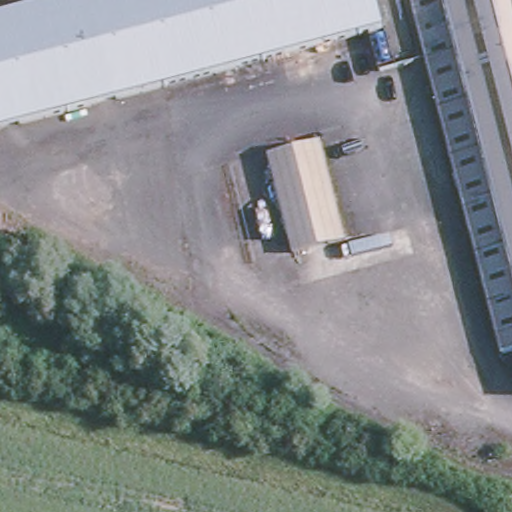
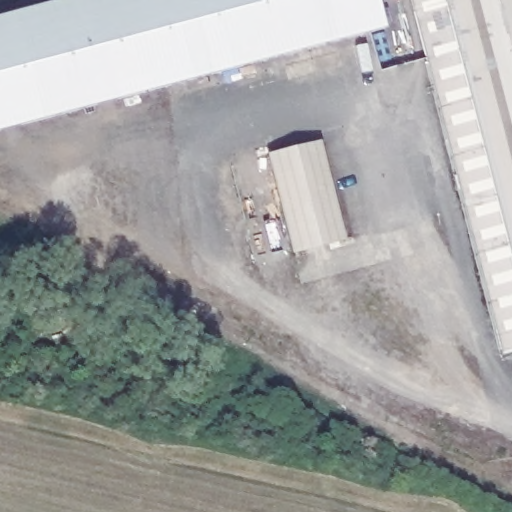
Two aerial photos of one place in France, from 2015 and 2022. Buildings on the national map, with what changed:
unchanged [(387,25),(0,131),(0,18),(66,0),(380,0),(387,25)]
unchanged [(497,356),(405,0),(512,0),(512,352),(497,356)]
unchanged [(318,140),(344,238),(292,251),(266,154),(318,140)]

